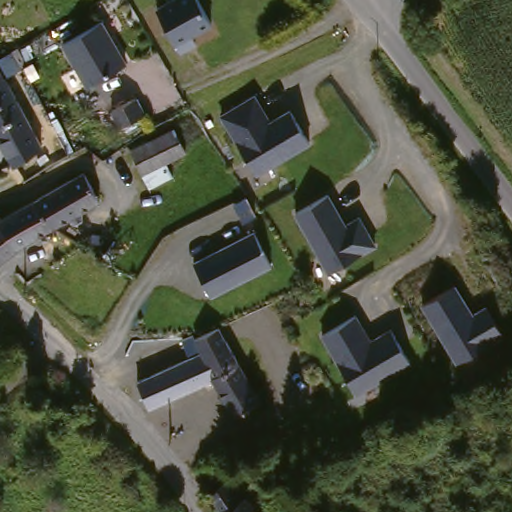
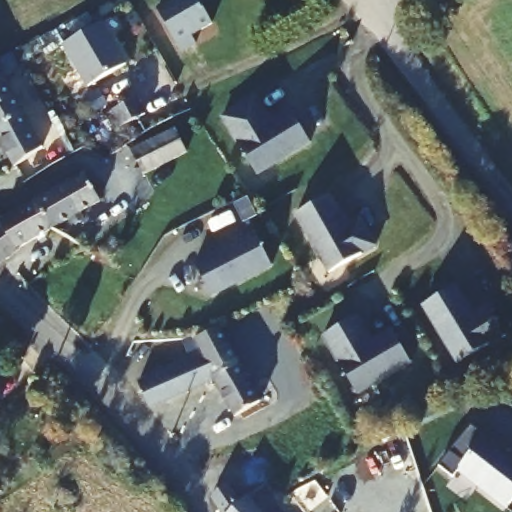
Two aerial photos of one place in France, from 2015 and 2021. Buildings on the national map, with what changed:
unchanged [(153,12),(172,0),(194,0),(209,24),(188,37),(193,45),(179,54),(153,12)]
unchanged [(98,16),(124,57),(86,81),(61,40),(98,16)]
unchanged [(3,74),(0,75),(0,68),(3,74)]
unchanged [(3,74),(41,142),(13,159),(0,137),(0,75),(3,74)]
unchanged [(154,107),(129,120),(121,103),(146,91),(154,107)]
unchanged [(219,119),(251,100),(261,116),(257,118),(261,125),(267,126),(288,114),(307,147),(254,177),(219,119)]
unchanged [(186,154),(144,176),(131,151),(173,128),(186,154)]
unchanged [(78,171),(93,200),(44,226),(26,196),(78,171)]
unchanged [(319,190),(336,220),(350,212),(366,241),(319,267),(286,208),(319,190)]
unchanged [(44,226),(13,245),(0,255),(0,210),(26,196),(44,226)]
unchanged [(211,297),(192,261),(253,230),(273,266),(211,297)]
unchanged [(475,313),(486,307),(504,337),(458,365),(422,305),(455,286),(475,313)]
unchanged [(371,337),(387,327),(411,358),(359,391),(322,335),(354,315),(371,337)]
unchanged [(203,348),(205,347),(198,333),(201,331),(216,323),(220,322),(226,337),(241,362),(261,396),(235,411),(214,376),(212,377),(151,405),(131,383),(203,348)]
new [(512,460),(512,504),(506,510),(461,468),(453,476),(439,462),(479,427),(512,460)]
unchanged [(206,498),(207,497),(211,492),(199,474),(214,461),(226,481),(232,476),(259,504),(266,512),(217,512),(212,506),(206,498)]

